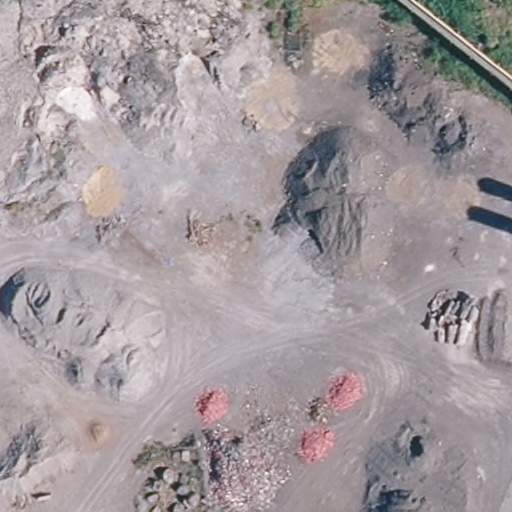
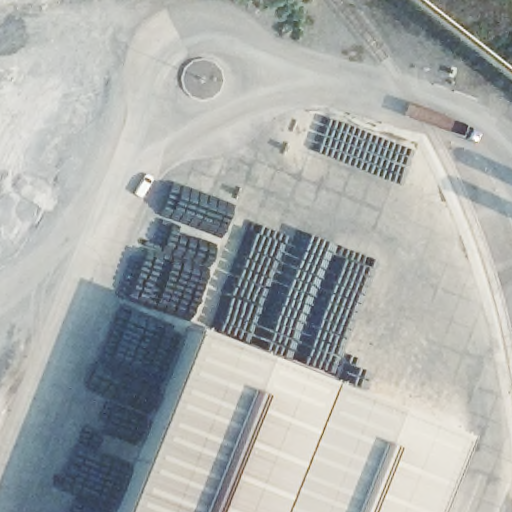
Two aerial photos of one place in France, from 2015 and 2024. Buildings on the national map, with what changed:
new [(428,512),(113,512),(187,325),(460,432),(428,512)]

